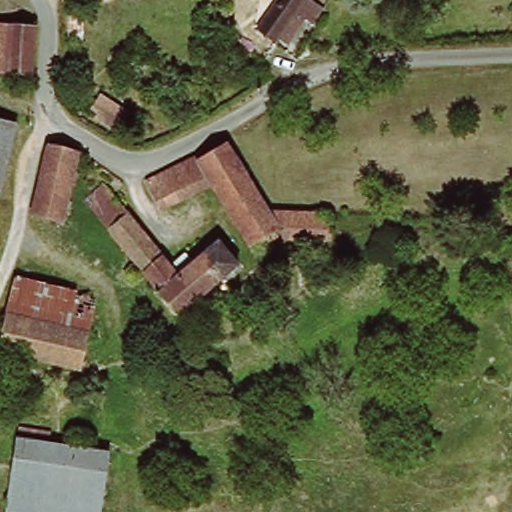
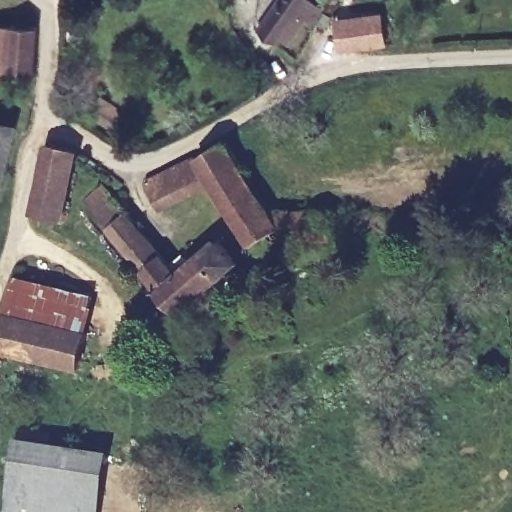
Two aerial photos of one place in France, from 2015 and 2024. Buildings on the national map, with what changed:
unchanged [(281,44),(275,39),(272,45),(255,33),(277,0),(302,0),(320,11),(305,34),(292,25),(281,44)]
new [(382,11),(386,42),(354,47),(339,49),(334,18),(350,16),(382,11)]
unchanged [(27,80),(0,79),(0,28),(34,30),(27,80)]
unchanged [(104,112),(124,116),(121,132),(102,127),(104,112)]
unchanged [(0,177),(0,133),(9,135),(0,177)]
unchanged [(325,218),(323,243),(285,244),(280,237),(248,254),(207,184),(157,209),(142,182),(188,157),(191,162),(225,144),(268,218),(325,218)]
unchanged [(78,157),(60,223),(27,218),(44,151),(78,157)]
unchanged [(184,272),(213,248),(232,271),(177,318),(82,207),(102,191),(162,261),(170,255),(184,272)]
unchanged [(0,347),(0,327),(10,280),(35,285),(87,293),(85,329),(77,364),(0,347)]
unchanged [(15,443),(101,457),(92,512),(4,512),(15,443)]

